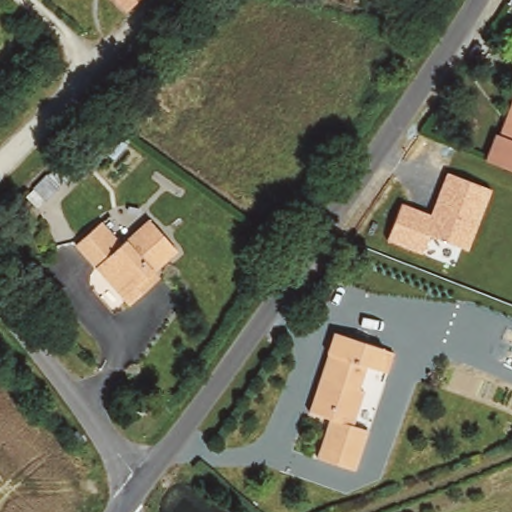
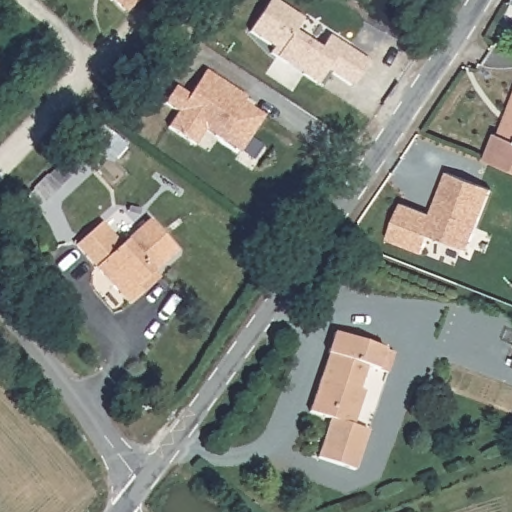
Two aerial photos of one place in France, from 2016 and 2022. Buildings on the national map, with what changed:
unchanged [(114,0),(139,0),(126,13),(114,0)]
new [(296,31),(321,48),(329,35),(368,62),(352,88),(331,73),(321,88),(269,54),(274,46),(249,31),(269,0),(274,0),(304,19),(296,31)]
new [(189,94),(205,70),(246,96),(242,101),(265,116),(239,153),(207,129),(196,146),(168,126),(177,111),(164,104),(176,85),(189,94)]
unchanged [(499,136),(512,96),(512,172),(485,161),(493,134),(499,136)]
unchanged [(104,151),(88,139),(102,124),(116,136),(104,151)]
unchanged [(27,197),(60,165),(71,176),(37,208),(27,197)]
unchanged [(401,204),(432,214),(446,174),(490,190),(468,252),(428,237),(422,254),(388,242),(401,204)]
unchanged [(146,290),(129,305),(76,245),(101,222),(121,244),(149,219),(177,251),(154,272),(159,278),(146,290)]
unchanged [(333,422),(310,415),(336,333),(373,344),(365,371),(352,367),(346,387),(372,395),(361,430),(375,435),(363,471),(321,458),(333,422)]

